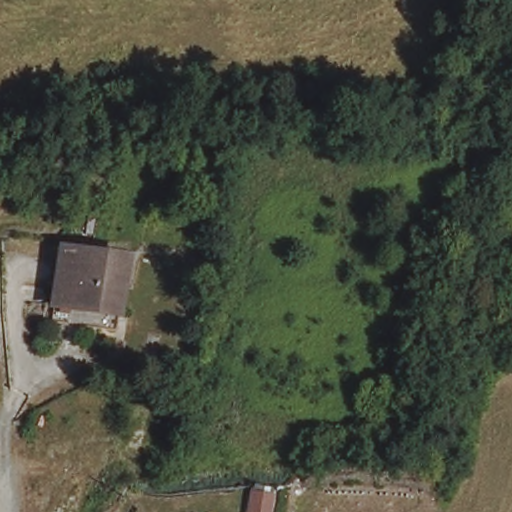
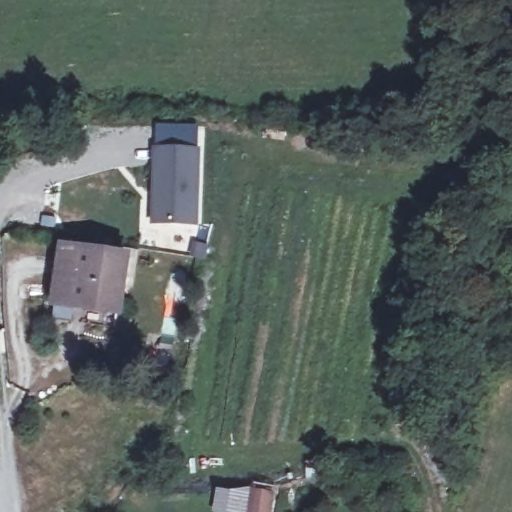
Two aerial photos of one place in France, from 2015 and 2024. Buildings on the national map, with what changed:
new [(195,224),(152,222),(155,149),(198,151),(195,224)]
unchanged [(97,325),(100,310),(45,301),(55,241),(125,252),(115,312),(110,312),(107,327),(97,325)]
unchanged [(181,336),(175,360),(164,358),(170,334),(181,336)]

